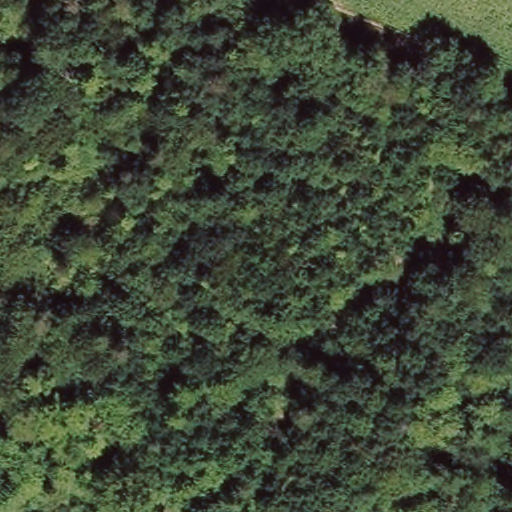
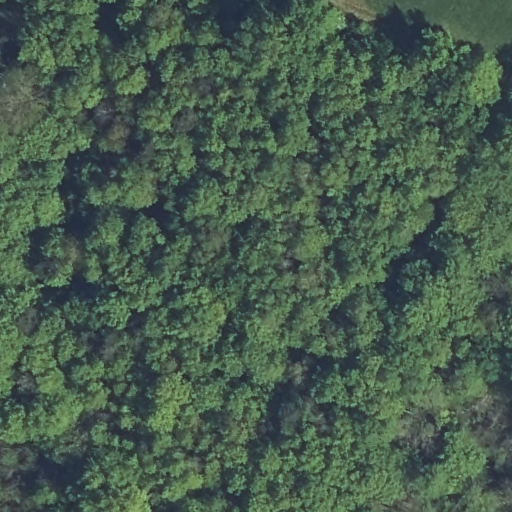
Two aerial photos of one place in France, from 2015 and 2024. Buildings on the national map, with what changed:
unchanged [(338,400),(335,397),(344,385),(356,391),(346,405),(338,400)]

